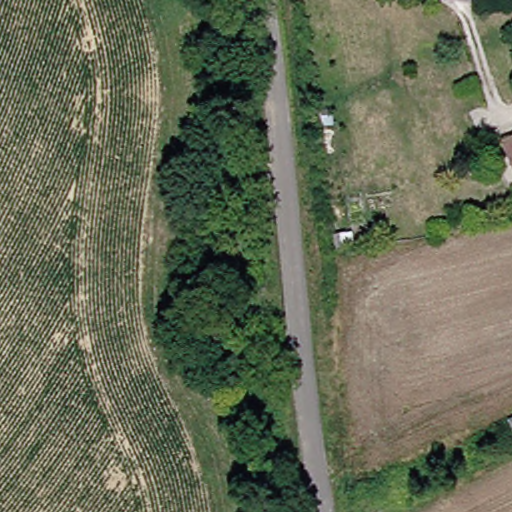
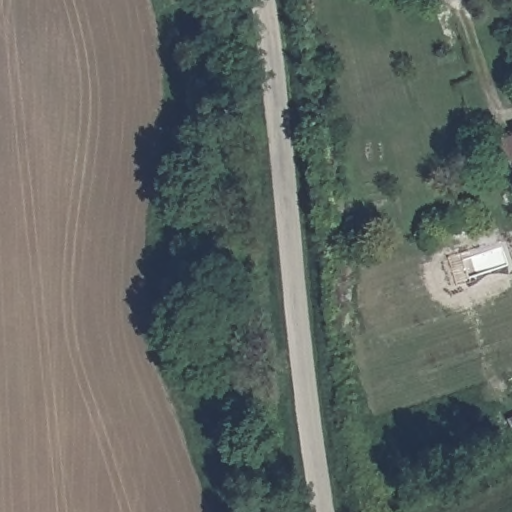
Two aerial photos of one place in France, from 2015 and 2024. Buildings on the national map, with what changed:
unchanged [(503,137),(512,133),(512,160),(503,137)]

